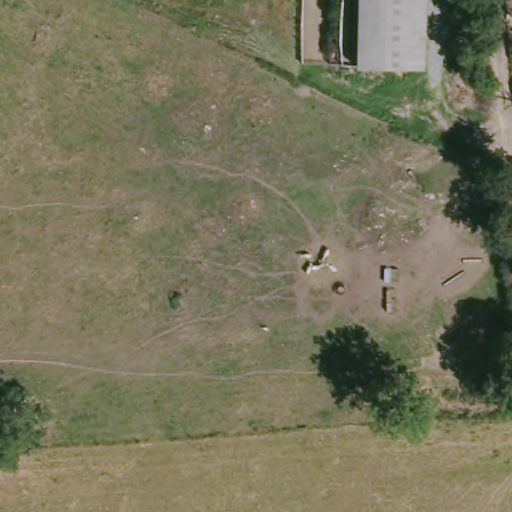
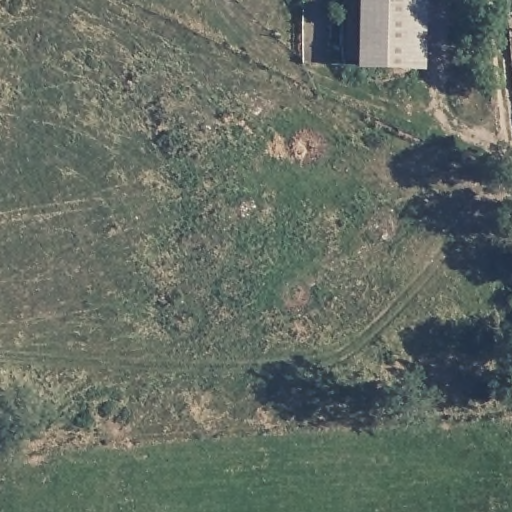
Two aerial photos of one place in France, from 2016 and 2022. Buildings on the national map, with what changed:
unchanged [(427,70),(356,68),(358,0),(428,0),(427,70)]

